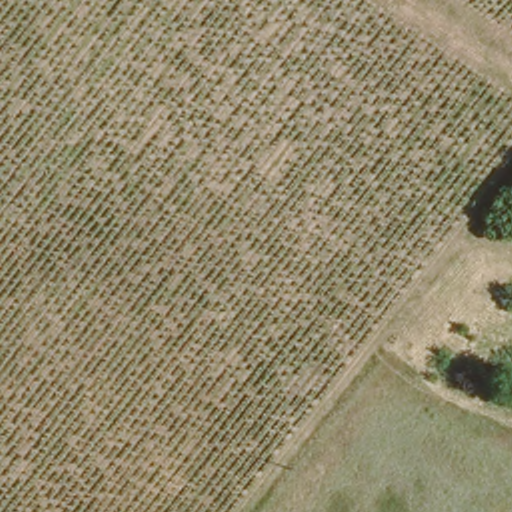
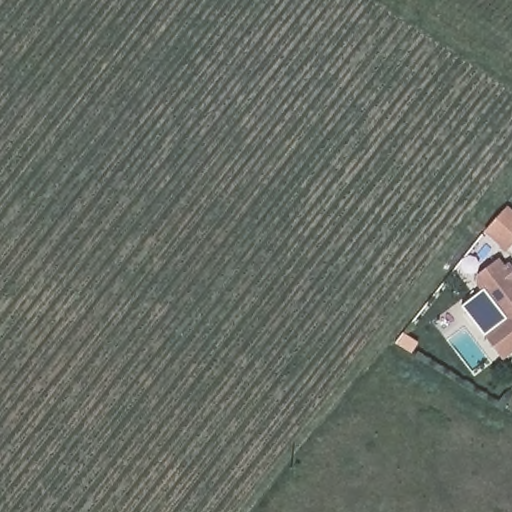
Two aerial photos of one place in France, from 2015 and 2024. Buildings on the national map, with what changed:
new [(505,207),(512,213),(512,245),(506,251),(484,233),(505,207)]
new [(500,319),(475,284),(475,275),(499,258),(504,266),(509,263),(512,268),(512,353),(502,360),(482,333),(500,319)]

